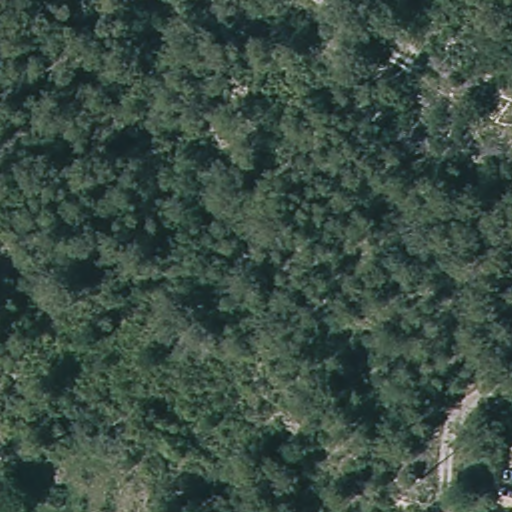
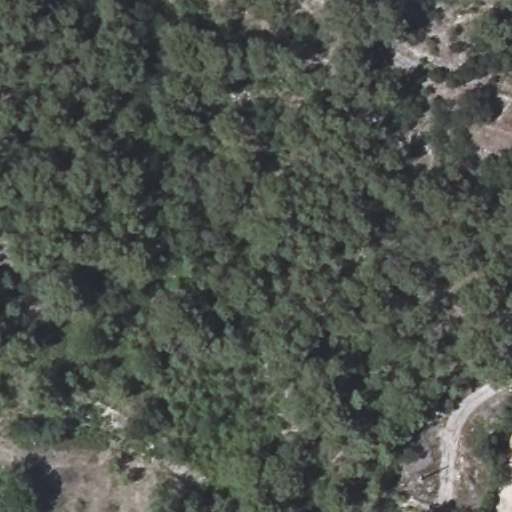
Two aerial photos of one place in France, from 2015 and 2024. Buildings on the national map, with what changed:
[]

